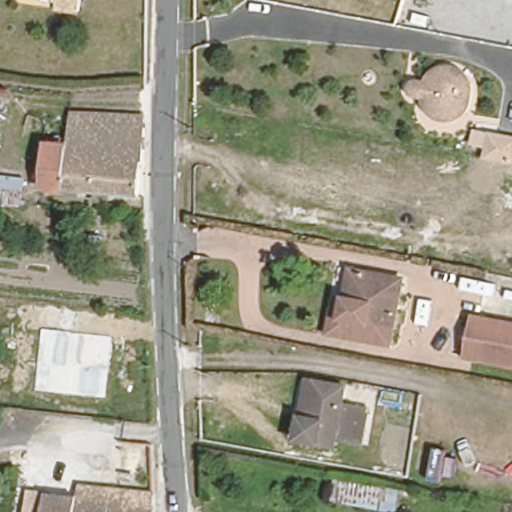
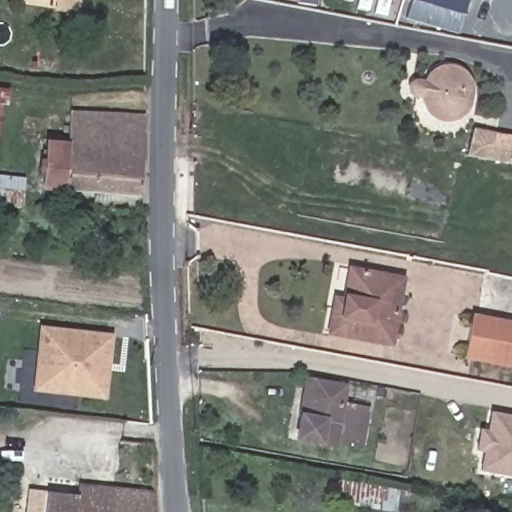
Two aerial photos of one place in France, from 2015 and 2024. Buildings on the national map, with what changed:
unchanged [(71,10),(50,7),(52,0),(72,0),(71,10)]
unchanged [(442,71),(444,71),(445,72),(447,73),(448,73),(450,74),(451,75),(452,76),(453,78),(455,79),(455,80),(456,81),(457,83),(458,84),(458,86),(459,88),(460,89),(460,91),(460,92),(460,94),(460,96),(460,97),(460,99),(459,101),(458,102),(458,104),(457,105),(456,107),(455,108),(455,109),(453,110),(452,112),(450,113),(450,114),(448,114),(446,115),(445,116),(443,116),(442,117),(440,117),(438,117),(437,118),(435,118),(433,117),(432,117),(430,117),(428,116),(427,116),(425,115),(424,114),(423,113),(421,112),(420,111),(419,110),(418,109),(417,108),(416,106),(415,105),(415,103),(414,102),(413,100),(413,99),(413,97),(412,95),(412,94),(407,93),(408,86),(413,87),(414,85),(415,84),(415,82),(416,81),(417,80),(418,78),(420,77),(420,76),(422,75),(423,74),(425,73),(426,72),(427,72),(429,71),(431,71),(432,70),(434,70),(435,70),(439,70),(440,70),(442,71)]
unchanged [(6,102),(1,102),(0,110),(0,87),(9,87),(6,102)]
unchanged [(128,193),(36,186),(40,140),(60,141),(63,110),(132,114),(132,122),(128,193)]
unchanged [(482,159),(487,130),(512,135),(512,165),(482,159)]
unchanged [(0,174),(15,175),(12,204),(0,202),(0,174)]
unchanged [(104,234),(102,246),(90,244),(91,232),(104,234)]
unchanged [(374,290),(392,293),(385,345),(327,335),(331,312),(341,314),(347,277),(375,281),(374,290)]
unchanged [(470,366),(477,323),(512,329),(512,373),(470,366)]
new [(105,400),(32,391),(39,326),(112,335),(105,400)]
unchanged [(290,380),(296,381),(333,388),(330,405),(356,410),(350,446),(323,441),(322,448),(279,440),(284,413),(290,380)]
new [(480,472),(483,453),(476,452),(480,429),(487,430),(490,412),(512,416),(512,478),(480,472)]
new [(396,512),(377,512),(336,507),(340,481),(398,488),(396,512)]
unchanged [(29,512),(32,491),(64,495),(65,484),(76,486),(139,495),(139,512),(29,512)]

